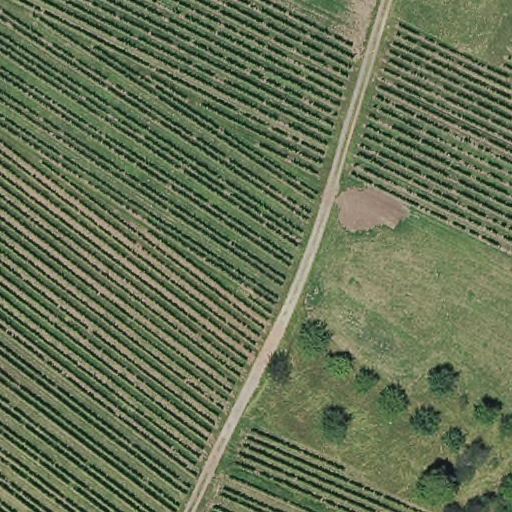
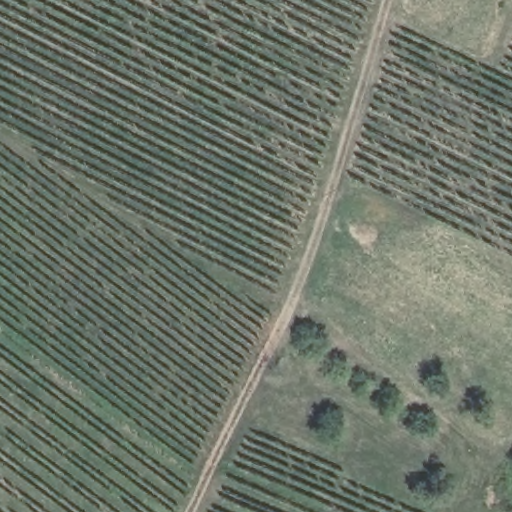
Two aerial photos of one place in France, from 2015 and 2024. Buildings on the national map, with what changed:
[]

